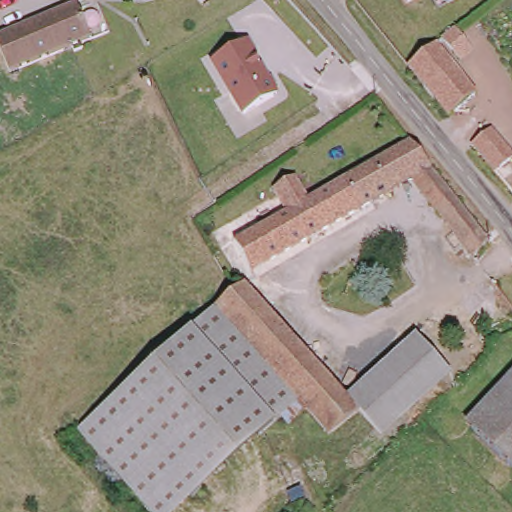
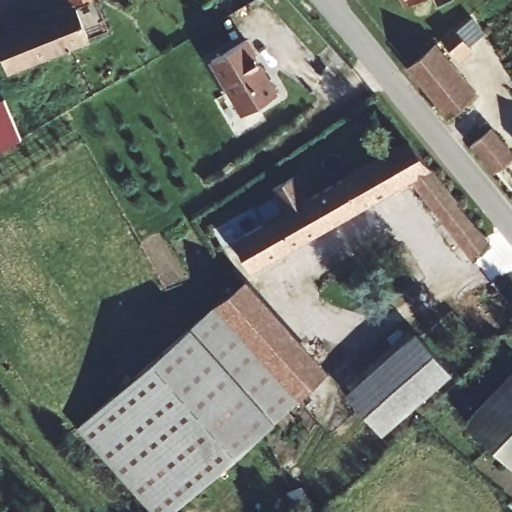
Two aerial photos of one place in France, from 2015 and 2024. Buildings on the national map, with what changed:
unchanged [(69,0),(70,0),(69,1),(69,0)]
unchanged [(418,2),(416,0),(421,0),(418,2)]
unchanged [(13,70),(0,43),(0,33),(71,5),(86,39),(13,70)]
unchanged [(431,46),(441,37),(459,60),(451,67),(431,46)]
unchanged [(248,47),(274,100),(244,122),(221,85),(212,67),(248,47)]
unchanged [(403,69),(426,50),(472,105),(450,124),(403,69)]
new [(23,142),(0,151),(0,100),(4,98),(23,142)]
unchanged [(487,130),(511,155),(495,169),(470,144),(487,130)]
unchanged [(245,224),(237,209),(288,181),(282,167),(297,160),(301,167),(315,192),(409,145),(490,238),(479,246),(416,183),(252,267),(231,231),(245,224)]
unchanged [(358,397),(330,421),(299,392),(295,389),(285,376),(259,350),(211,301),(238,276),(358,397)]
unchanged [(295,389),(288,396),(169,512),(162,512),(80,429),(211,301),(284,377),(295,389)]
unchanged [(458,365),(392,431),(358,397),(425,331),(458,365)]
unchanged [(464,420),(512,374),(512,467),(464,420)]

